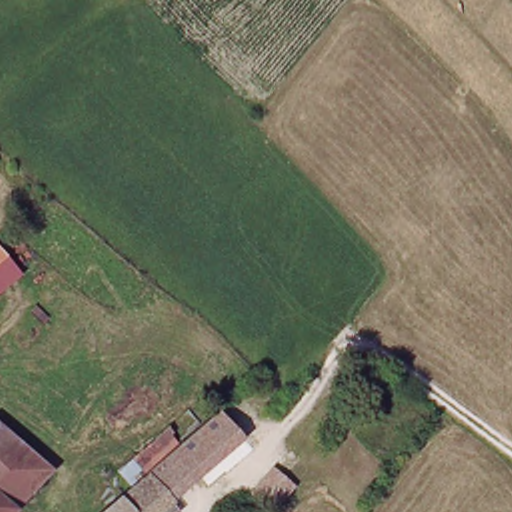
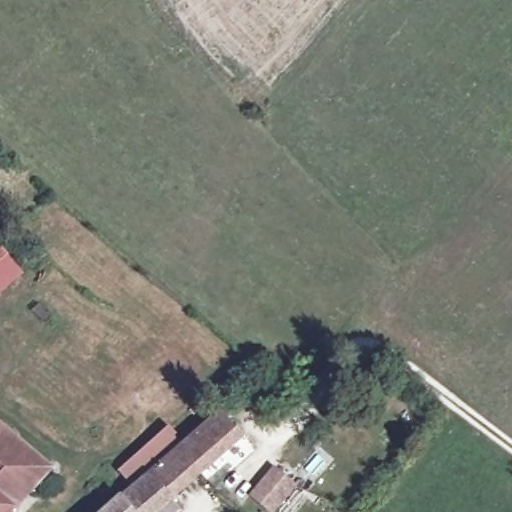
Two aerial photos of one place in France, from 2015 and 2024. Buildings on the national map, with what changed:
unchanged [(0,297),(0,249),(24,276),(0,297)]
unchanged [(176,424),(181,427),(176,431),(187,442),(227,407),(251,432),(158,512),(108,512),(154,471),(141,457),(176,424)]
unchanged [(19,505),(0,490),(0,418),(56,466),(19,505)]
new [(276,471),(295,488),(276,510),(257,494),(276,471)]
unchanged [(13,512),(0,512),(0,490),(19,505),(13,512)]

